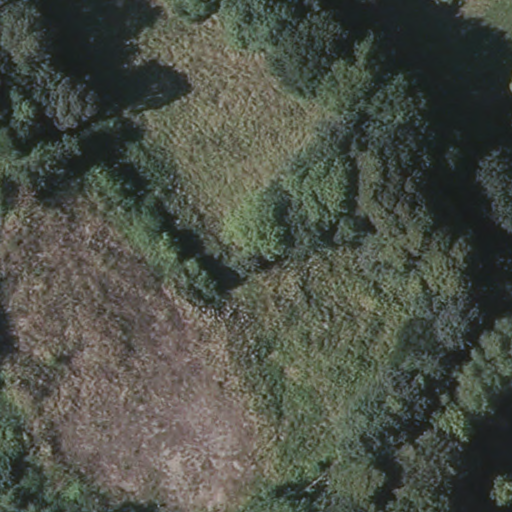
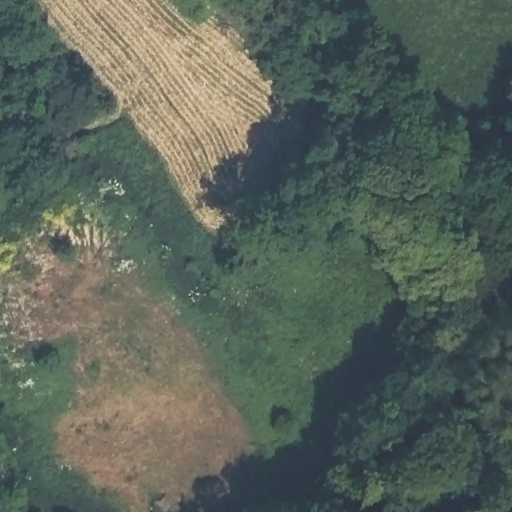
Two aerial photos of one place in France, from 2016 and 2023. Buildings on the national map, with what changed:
unchanged [(487,263),(462,284),(454,275),(480,255),(487,263)]
unchanged [(342,491),(315,512),(303,512),(292,498),(327,471),(342,491)]
unchanged [(129,510),(126,512),(98,512),(115,496),(129,510)]

